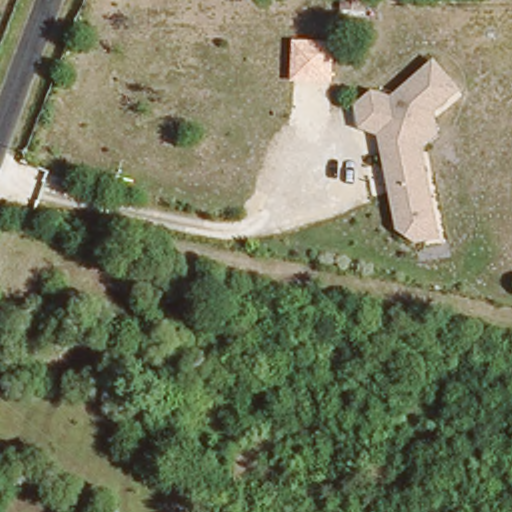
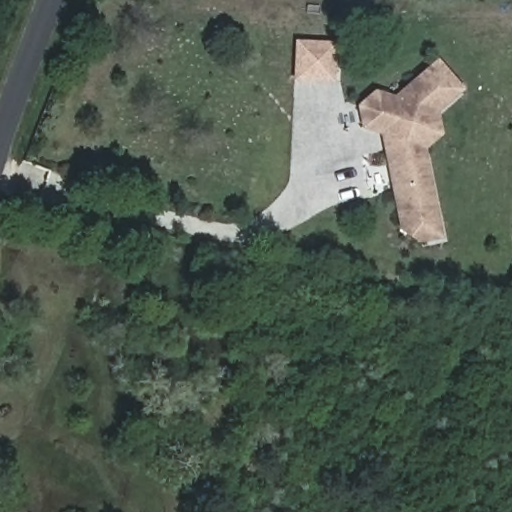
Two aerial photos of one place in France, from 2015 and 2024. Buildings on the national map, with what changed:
unchanged [(292,80),(294,41),(335,43),(335,82),(292,80)]
unchanged [(440,234),(420,239),(402,228),(382,151),(387,148),(385,136),(378,134),(358,129),(353,109),(368,95),(388,101),(428,62),(453,87),(417,121),(414,133),(440,234)]

